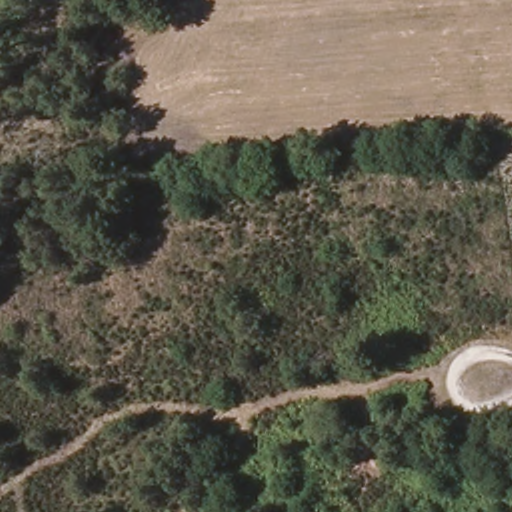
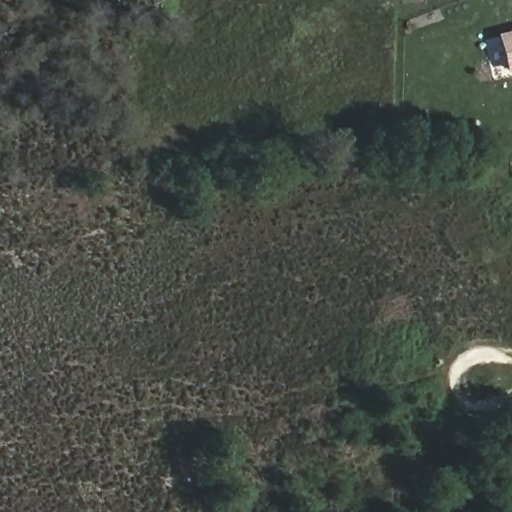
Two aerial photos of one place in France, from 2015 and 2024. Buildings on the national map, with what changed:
new [(498,36),(512,32),(512,68),(507,70),(498,36)]

